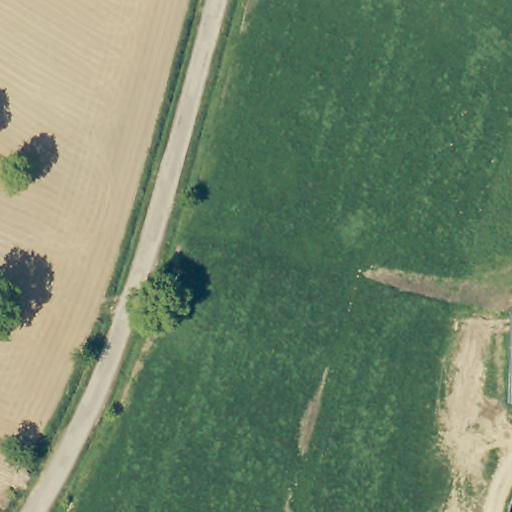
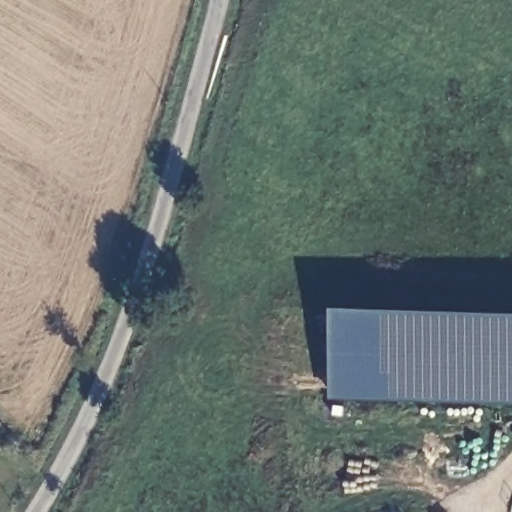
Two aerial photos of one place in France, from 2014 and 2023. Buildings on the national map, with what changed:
new [(329,400),(332,310),(512,317),(512,405),(329,400)]

